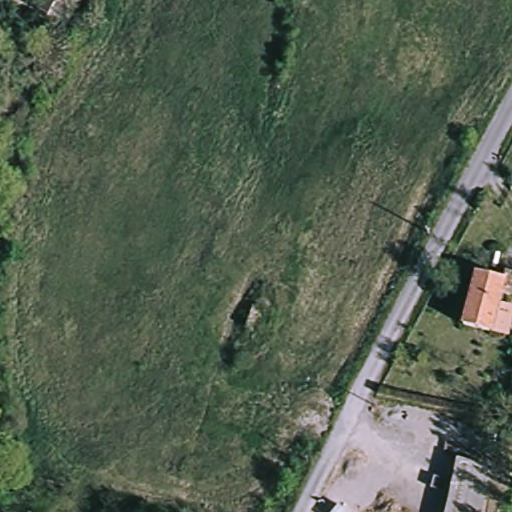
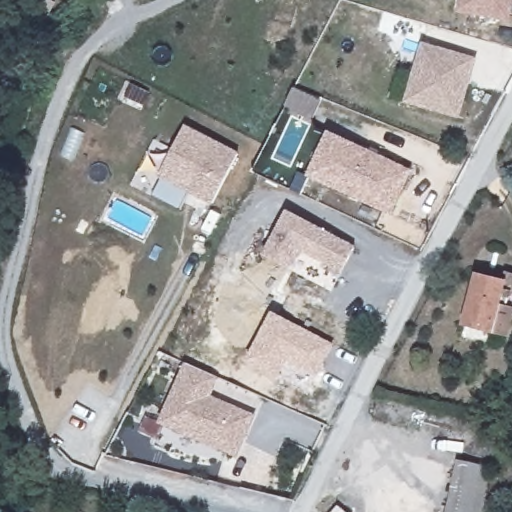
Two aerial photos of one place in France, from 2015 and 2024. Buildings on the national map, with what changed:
new [(462,0),(512,0),(512,14),(461,6),(462,0)]
new [(458,118),(404,102),(421,42),(476,58),(458,118)]
new [(182,125),(236,152),(211,202),(157,174),(182,125)]
new [(329,129),(372,149),(379,152),(413,168),(393,211),(319,177),(309,172),(329,129)]
new [(289,209),(357,246),(343,271),(300,247),(290,267),(265,253),(289,209)]
unchanged [(493,335),(462,328),(475,276),(503,283),(505,273),(512,274),(512,293),(504,291),(499,309),(512,311),(512,322),(507,339),(493,335)]
new [(317,376),(287,361),(278,377),(247,360),(271,312),(334,344),(317,376)]
new [(157,423),(182,363),(214,377),(206,396),(250,415),(233,456),(162,425),(157,423)]
unchanged [(451,463),(486,468),(478,512),(440,512),(451,463)]

